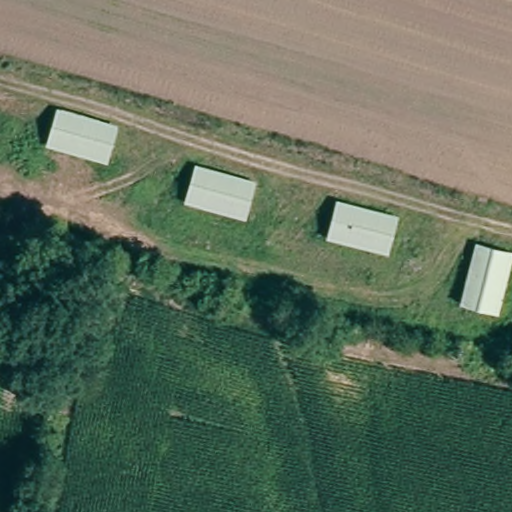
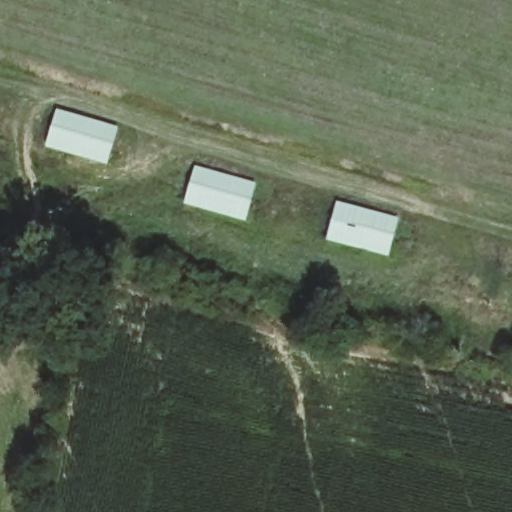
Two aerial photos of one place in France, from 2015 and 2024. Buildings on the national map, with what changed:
unchanged [(116,126),(105,164),(44,146),(57,109),(116,126)]
unchanged [(257,185),(245,219),(183,202),(194,167),(257,185)]
unchanged [(398,219),(388,250),(329,234),(338,204),(398,219)]
demolished [(511,254),(495,310),(459,301),(473,244),(511,254)]

